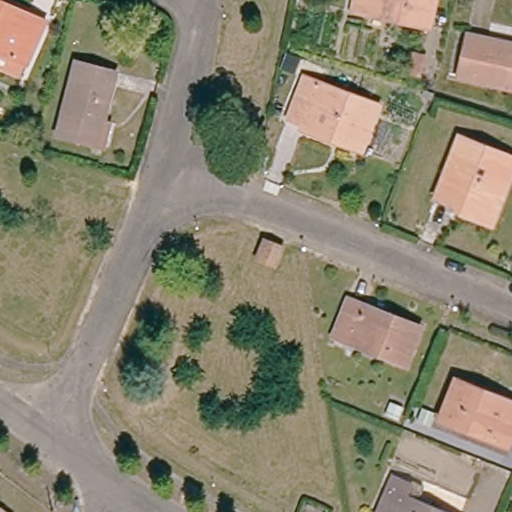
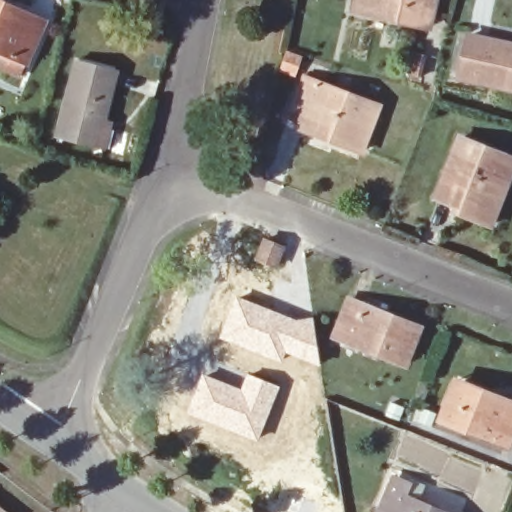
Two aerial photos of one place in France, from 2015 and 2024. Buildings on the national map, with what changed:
unchanged [(355,0),(436,0),(430,28),(407,23),(369,14),(353,11),(355,0)]
unchanged [(44,26),(21,79),(0,69),(0,1),(46,21),(44,26)]
unchanged [(458,78),(468,35),(508,44),(512,45),(512,89),(506,88),(475,81),(458,78)]
unchanged [(428,55),(422,78),(407,74),(412,51),(428,55)]
unchanged [(292,54),(305,58),(301,71),(288,67),(292,54)]
unchanged [(105,148),(99,146),(56,135),(76,61),(117,72),(105,121),(111,123),(105,148)]
unchanged [(308,124),(295,118),(311,77),(385,106),(366,152),(345,144),(306,128),(308,124)]
unchanged [(432,88),(426,86),(427,80),(433,81),(432,88)]
unchanged [(452,204),(436,197),(460,138),(501,154),(512,158),(512,171),(510,178),(491,225),(468,216),(460,213),(452,204)]
unchanged [(277,267),(257,259),(265,240),(284,247),(277,267)]
new [(236,294),(295,317),(313,316),(321,364),(286,353),(282,361),(219,338),(236,294)]
unchanged [(421,327),(406,364),(334,336),(348,299),(421,327)]
new [(203,373),(241,388),(247,373),(281,386),(258,441),(187,413),(203,373)]
unchanged [(507,448),(439,421),(453,384),(456,379),(491,394),(512,402),(512,436),(507,448)]
unchanged [(437,413),(432,426),(417,421),(422,408),(437,413)]
unchanged [(394,473),(409,479),(412,473),(426,479),(418,497),(453,512),(378,512),(394,473)]

